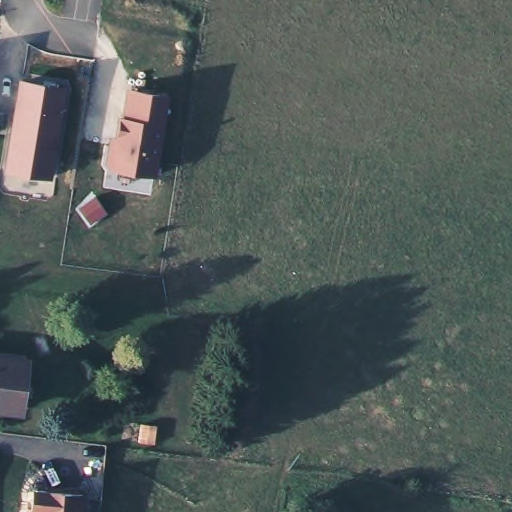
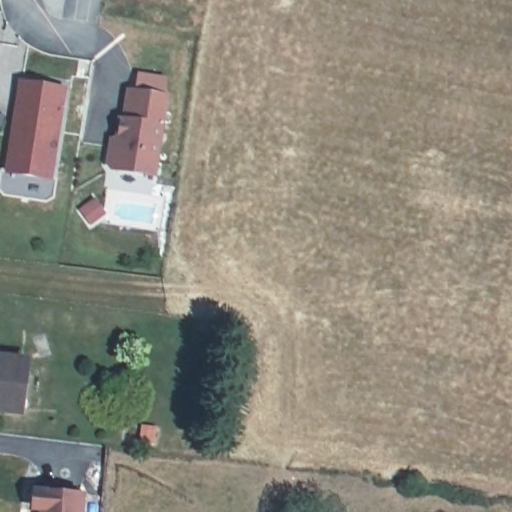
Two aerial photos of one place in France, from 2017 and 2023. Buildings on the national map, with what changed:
unchanged [(51,179),(5,172),(20,80),(65,88),(51,179)]
unchanged [(157,175),(105,169),(109,136),(116,136),(125,88),(168,96),(157,175)]
unchanged [(6,420),(0,419),(0,367),(12,368),(6,420)]
unchanged [(84,512),(46,512),(46,505),(40,504),(41,487),(85,489),(84,512)]

